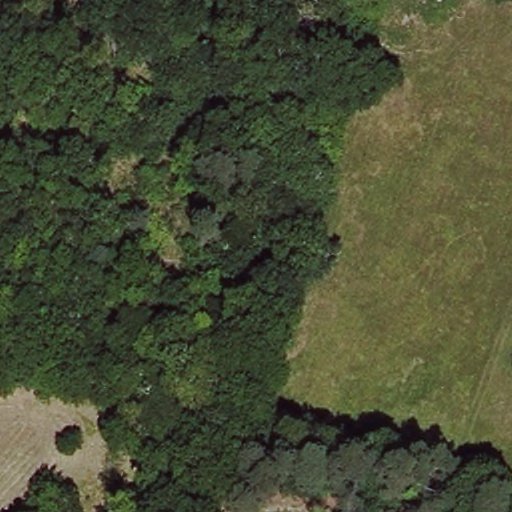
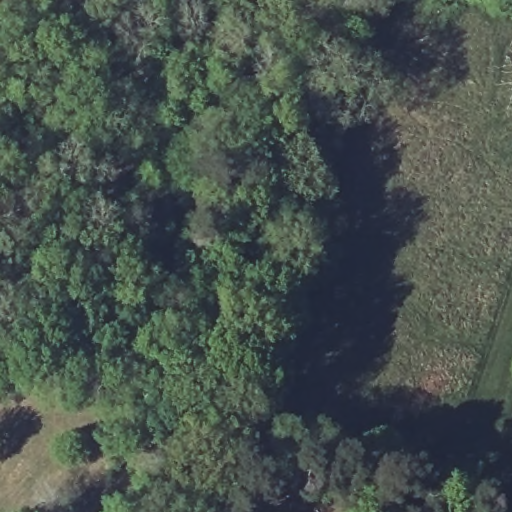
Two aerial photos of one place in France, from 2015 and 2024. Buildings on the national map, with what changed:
unchanged [(89,479),(117,482),(116,512),(87,512),(89,479)]

